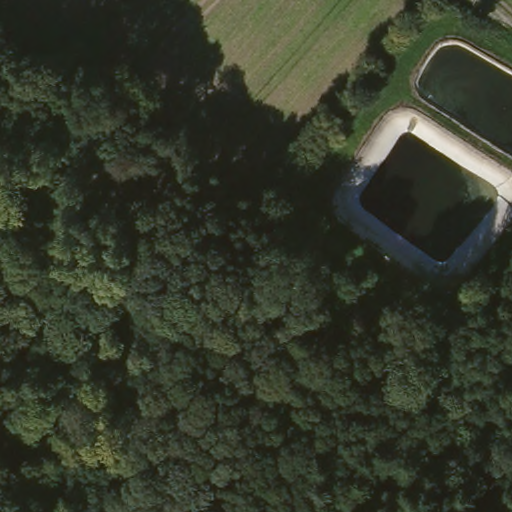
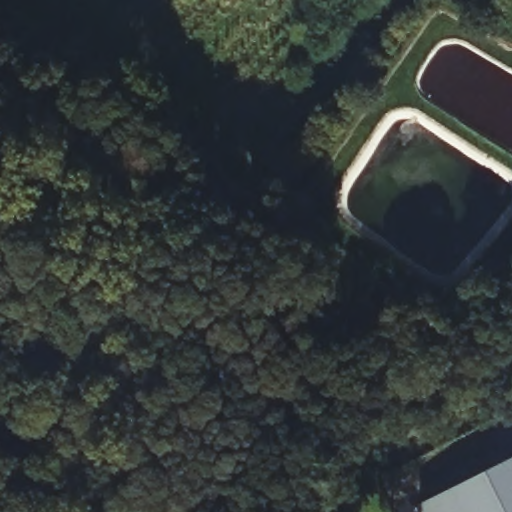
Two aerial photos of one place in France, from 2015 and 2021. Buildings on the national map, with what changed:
new [(430,512),(426,503),(512,458),(512,512),(430,512)]

